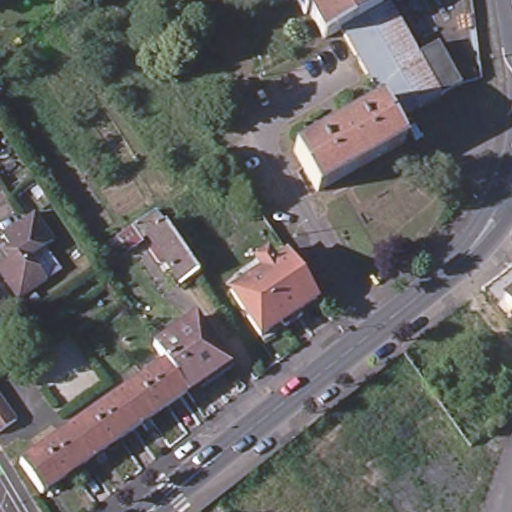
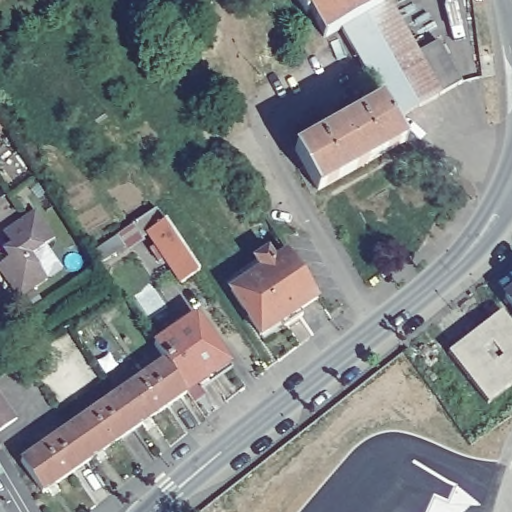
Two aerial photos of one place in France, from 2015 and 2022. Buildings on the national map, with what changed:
unchanged [(307,14),(299,18),(291,2),(294,0),(386,0),(389,5),(340,32),(322,43),(307,14)]
unchanged [(389,5),(417,56),(440,97),(392,124),(381,105),(340,32),(389,5)]
unchanged [(437,44),(460,85),(440,97),(417,56),(437,44)]
unchanged [(403,146),(315,194),(292,154),(381,105),(392,124),(403,146)]
unchanged [(158,261),(149,248),(154,245),(145,232),(138,236),(132,225),(154,209),(162,221),(175,240),(197,271),(181,283),(164,258),(158,261)]
unchanged [(38,268),(33,271),(42,284),(15,303),(0,281),(0,266),(3,264),(0,257),(0,255),(7,250),(0,239),(0,237),(30,216),(50,244),(37,253),(42,259),(38,268)]
unchanged [(125,246),(100,263),(92,252),(95,250),(117,235),(125,246)]
unchanged [(317,296),(298,310),(302,315),(283,327),(280,321),(261,334),(231,289),(262,269),(255,259),(267,251),(274,261),(288,252),(317,296)]
unchanged [(0,311),(0,287),(12,304),(0,311)]
unchanged [(504,296),(512,289),(512,306),(504,296)]
new [(503,310),(512,321),(512,386),(489,402),(448,351),(503,310)]
unchanged [(156,349),(196,321),(229,367),(199,388),(188,396),(156,349)]
unchanged [(186,397),(138,430),(117,400),(165,367),(186,397)]
unchanged [(0,431),(0,412),(0,394),(0,393),(0,394),(9,406),(18,419),(0,431)]
unchanged [(117,400),(138,430),(90,463),(70,432),(117,400)]
unchanged [(42,497),(22,466),(70,432),(90,463),(42,497)]

